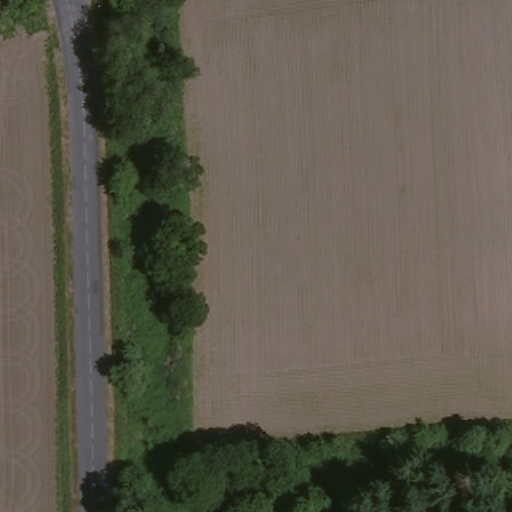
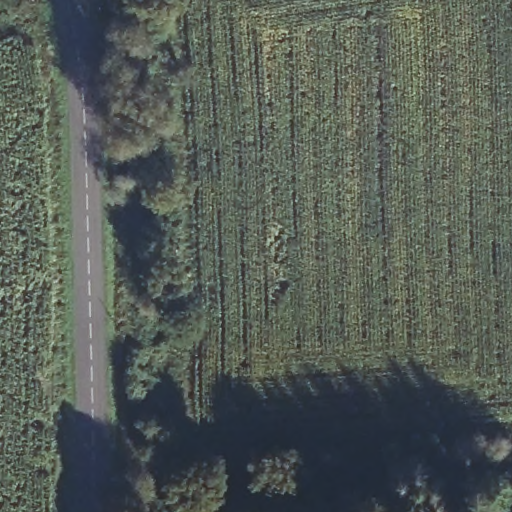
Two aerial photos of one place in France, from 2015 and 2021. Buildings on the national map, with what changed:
unchanged [(148,15),(135,15),(137,33),(114,36),(110,0),(147,0),(148,15)]

